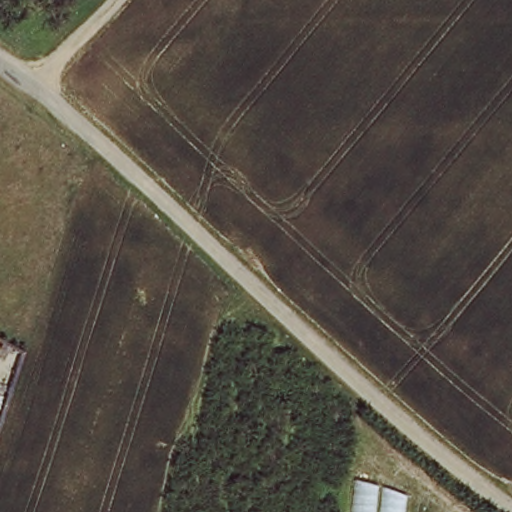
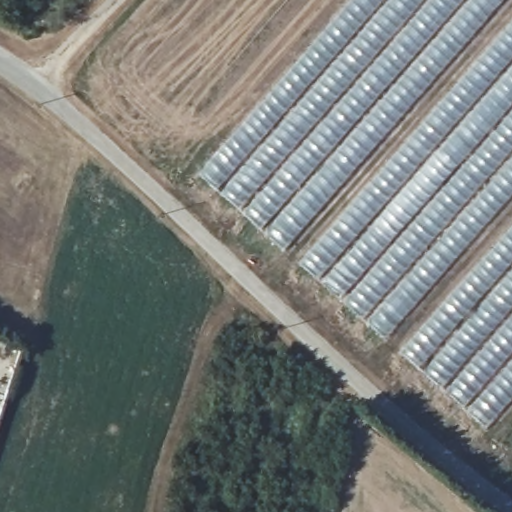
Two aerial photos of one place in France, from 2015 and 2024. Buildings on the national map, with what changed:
new [(504,0),(283,252),(197,175),(350,0),(504,0)]
new [(385,340),(299,264),(512,21),(512,196),(385,340)]
new [(400,354),(512,226),(512,396),(485,428),(400,354)]
new [(495,444),(512,425),(512,456),(495,444)]

